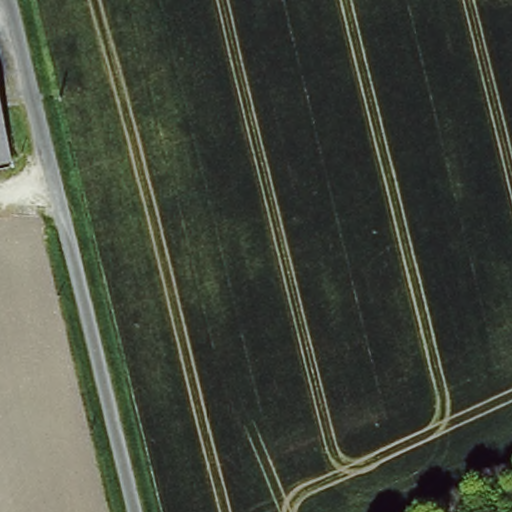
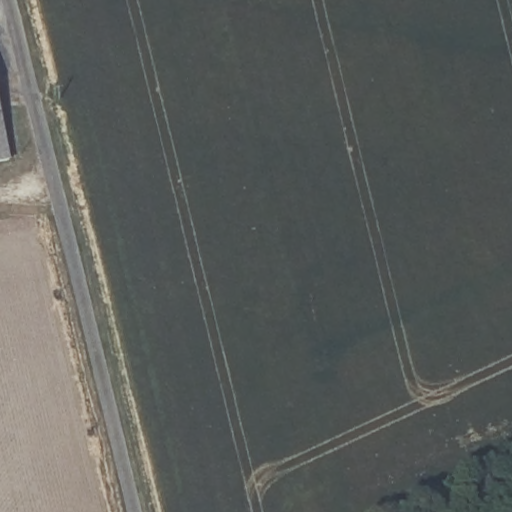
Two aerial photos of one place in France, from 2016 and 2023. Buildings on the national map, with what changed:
unchanged [(0,162),(0,112),(9,160),(0,162)]

